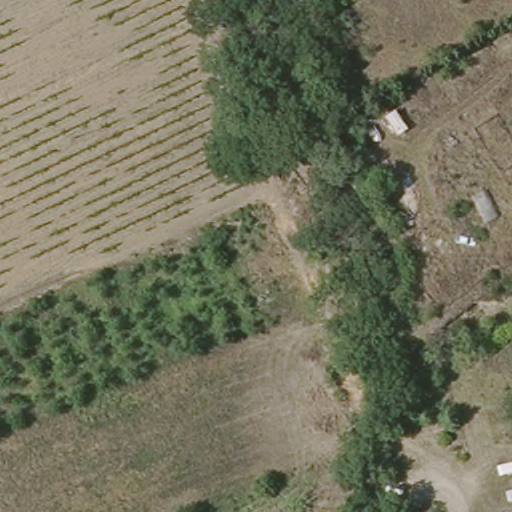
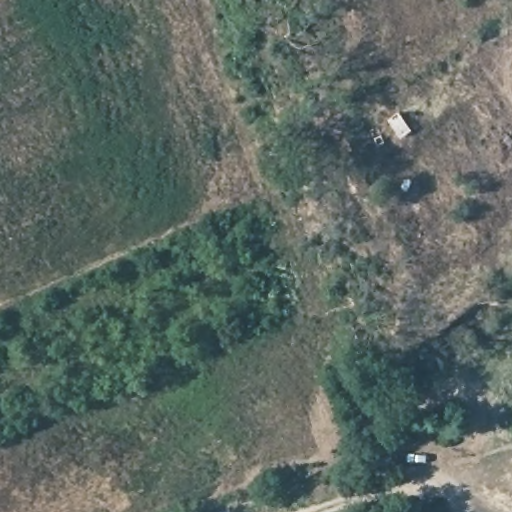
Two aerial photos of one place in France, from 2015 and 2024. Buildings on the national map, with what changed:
unchanged [(382,121),(396,115),(406,134),(392,140),(382,121)]

